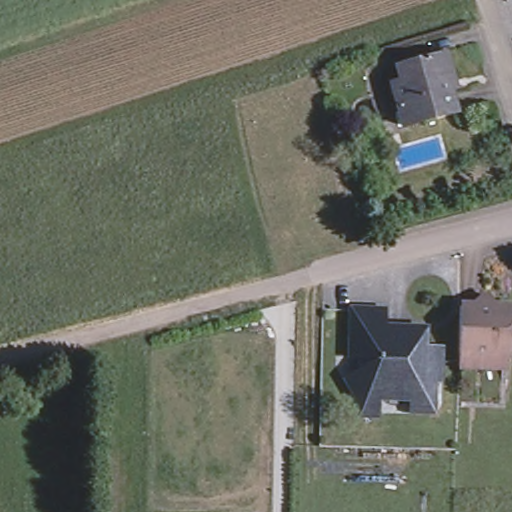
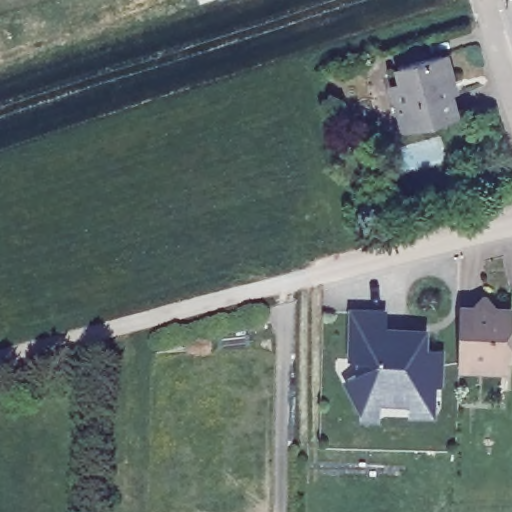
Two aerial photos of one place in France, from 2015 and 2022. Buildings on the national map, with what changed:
unchanged [(385,85),(393,82),(390,69),(435,54),(443,77),(437,79),(447,111),(397,126),(385,85)]
unchanged [(507,363),(461,362),(462,350),(463,303),(479,304),(479,300),(487,293),(490,293),(497,301),(497,305),(509,305),(512,305),(512,363),(507,363)]
unchanged [(417,412),(392,411),(379,419),(374,421),(342,366),(343,356),(357,356),(360,308),(391,310),(391,338),(407,339),(408,326),(430,327),(430,346),(437,346),(447,363),(443,366),(443,373),(444,375),(441,406),(440,412),(417,412)]

